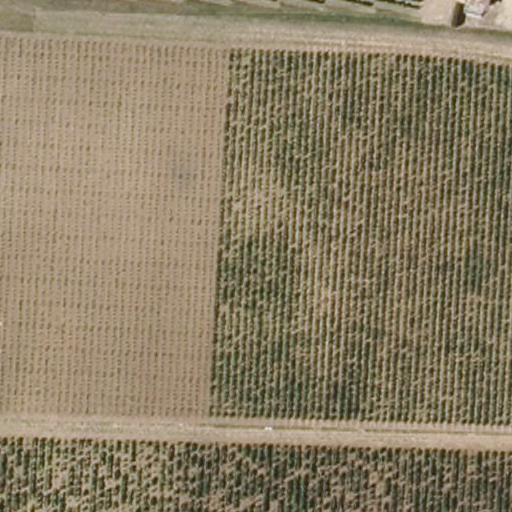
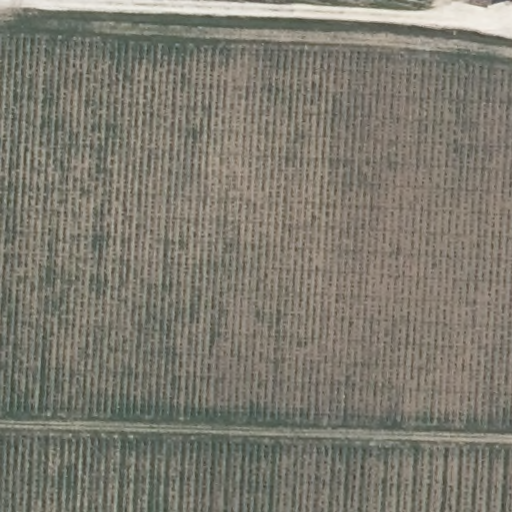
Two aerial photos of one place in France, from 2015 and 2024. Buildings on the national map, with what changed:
unchanged [(489,8),(460,0),(492,0),(489,8)]

